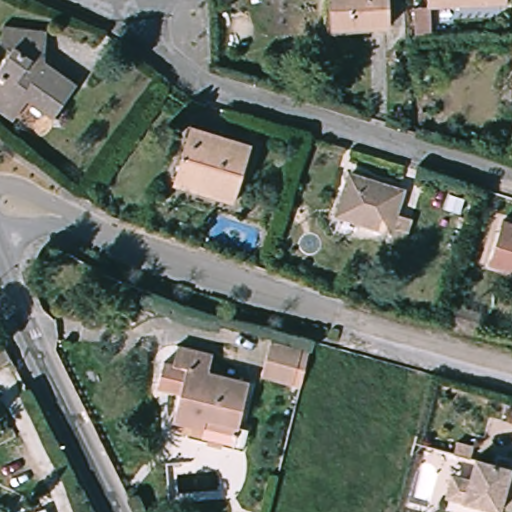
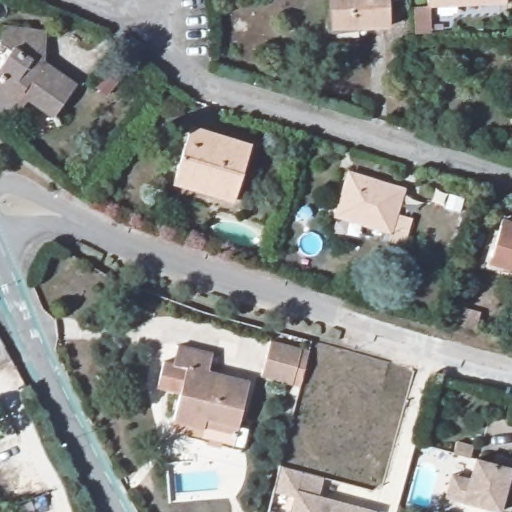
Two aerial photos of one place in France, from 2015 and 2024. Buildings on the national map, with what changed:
unchanged [(333,29),(332,0),(387,0),(388,27),(333,29)]
unchanged [(430,29),(416,29),(416,2),(428,1),(430,29)]
unchanged [(46,65),(78,87),(55,119),(33,102),(18,124),(0,111),(0,77),(0,69),(13,51),(1,44),(4,40),(5,26),(48,33),(46,65)]
unchanged [(251,146),(235,202),(175,184),(191,127),(251,146)]
unchanged [(392,214),(409,220),(400,247),(383,241),(386,234),(332,216),(346,173),(399,190),(392,214)]
unchanged [(491,263),(504,222),(512,224),(512,270),(491,263)]
unchanged [(0,363),(0,334),(2,333),(14,356),(0,363)]
unchanged [(256,374),(264,341),(303,348),(294,382),(256,374)]
unchanged [(179,343),(215,352),(211,371),(251,381),(238,433),(172,417),(185,364),(176,361),(179,343)]
unchanged [(447,475),(457,477),(466,481),(472,458),(509,468),(512,456),(512,492),(504,490),(497,512),(452,499),(442,496),(447,475)]
new [(290,512),(293,498),(276,493),(282,467),(325,478),(321,496),(376,512),(290,512)]

